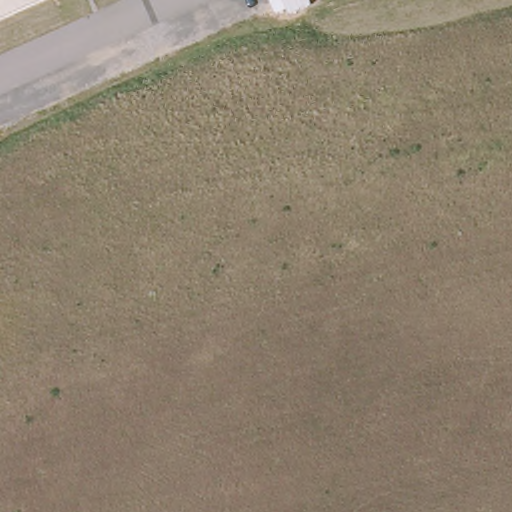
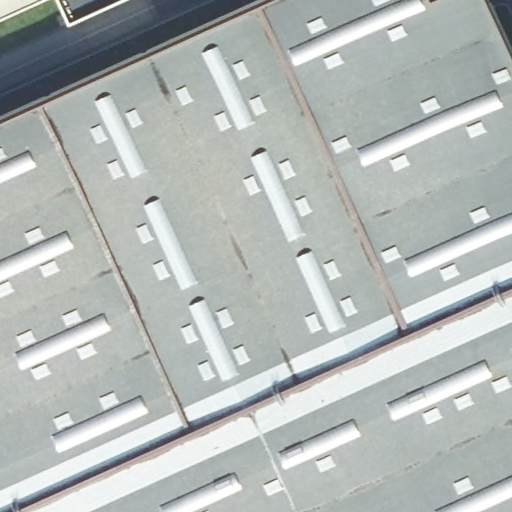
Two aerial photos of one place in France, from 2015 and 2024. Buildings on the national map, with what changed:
unchanged [(5,14),(0,16),(0,0),(27,0),(28,3),(5,14)]
new [(512,512),(0,512),(0,120),(266,0),(489,0),(512,51),(512,512)]
new [(27,0),(34,0),(28,3),(27,0)]
new [(120,0),(70,23),(58,0),(120,0)]

